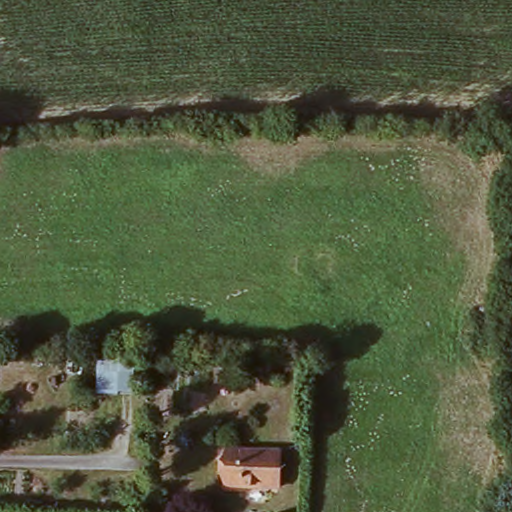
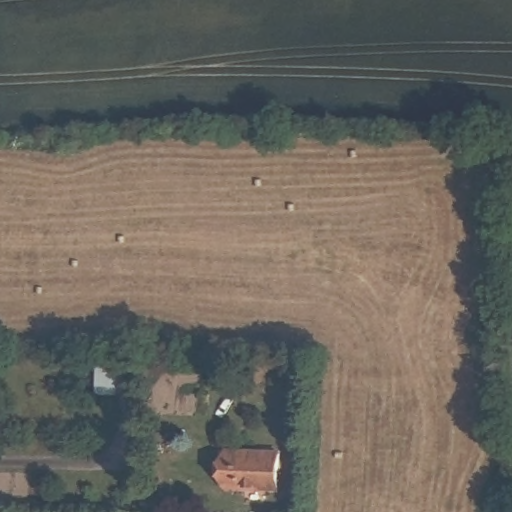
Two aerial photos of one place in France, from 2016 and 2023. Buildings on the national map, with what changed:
unchanged [(96,358),(136,362),(134,397),(94,394),(96,358)]
unchanged [(220,462),(240,463),(240,454),(273,456),(273,492),(219,488),(220,462)]

